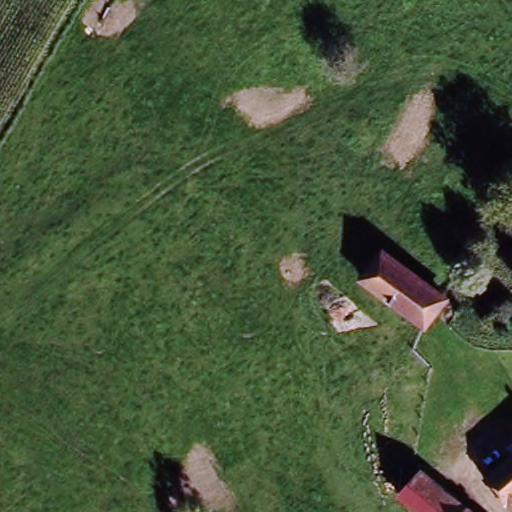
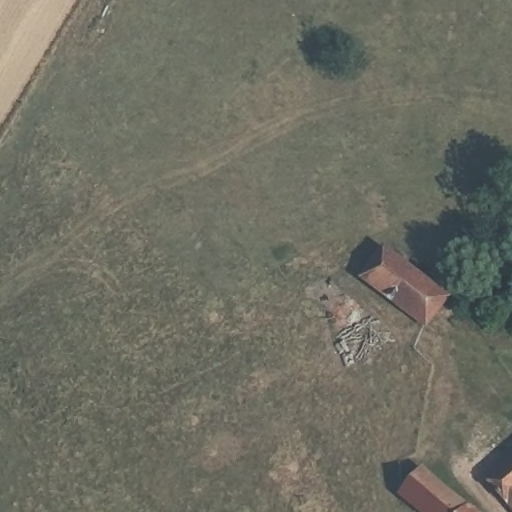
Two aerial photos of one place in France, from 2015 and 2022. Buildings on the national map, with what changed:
unchanged [(372,255),(382,245),(386,249),(395,258),(426,286),(430,290),(425,295),(406,316),(380,291),(358,271),(372,255)]
unchanged [(482,497),(512,462),(512,512),(499,512),(482,497)]
unchanged [(395,493),(415,472),(471,512),(422,512),(395,493)]

